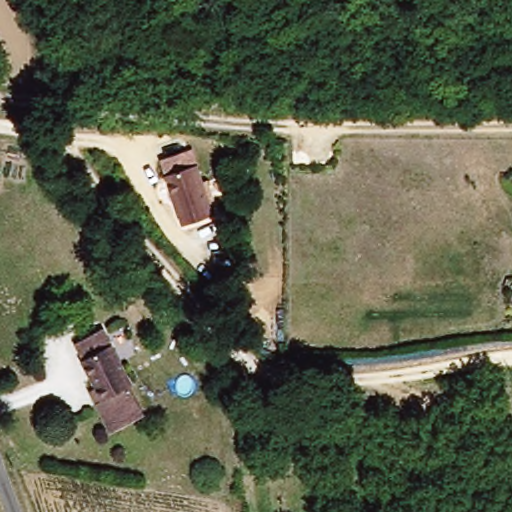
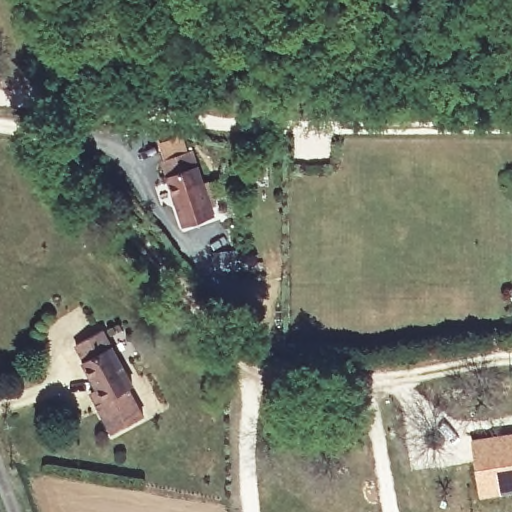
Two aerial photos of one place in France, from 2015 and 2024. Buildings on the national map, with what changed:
unchanged [(192,151),(212,214),(180,225),(160,161),(192,151)]
unchanged [(85,362),(77,347),(104,332),(135,389),(130,392),(144,418),(114,435),(97,406),(104,402),(84,363),(85,362)]
new [(474,467),(470,438),(512,432),(512,492),(500,493),(478,497),(474,467)]

